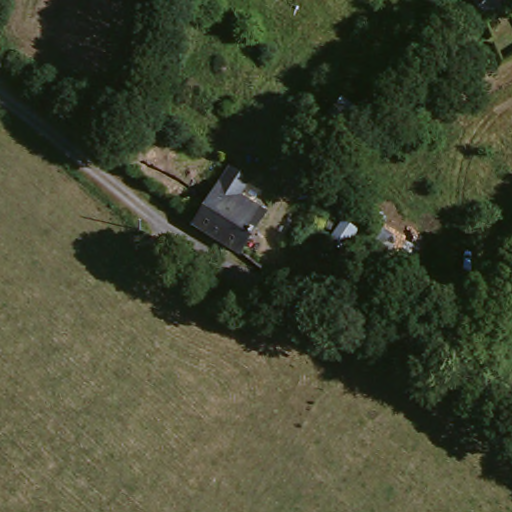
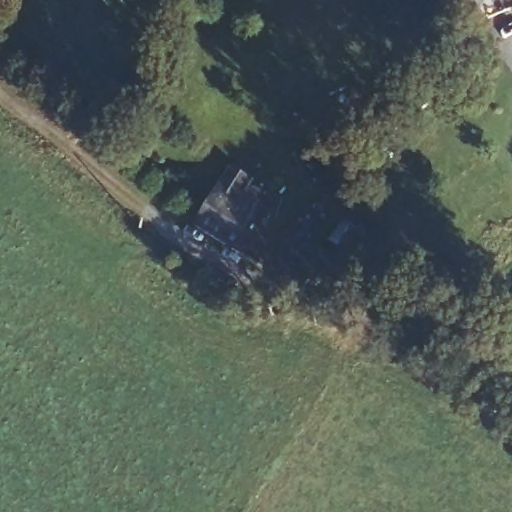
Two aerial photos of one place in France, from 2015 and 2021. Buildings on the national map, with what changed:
unchanged [(474,3),(471,0),(478,0),(474,3)]
unchanged [(410,126),(397,114),(419,90),(433,101),(410,126)]
unchanged [(340,148),(320,130),(338,109),(359,128),(340,148)]
unchanged [(216,190),(226,174),(246,186),(237,203),(264,219),(239,260),(189,233),(216,190)]
unchanged [(374,234),(363,251),(348,241),(359,224),(374,234)]

